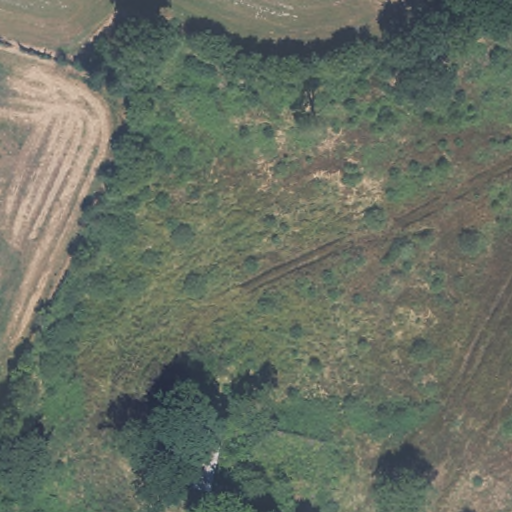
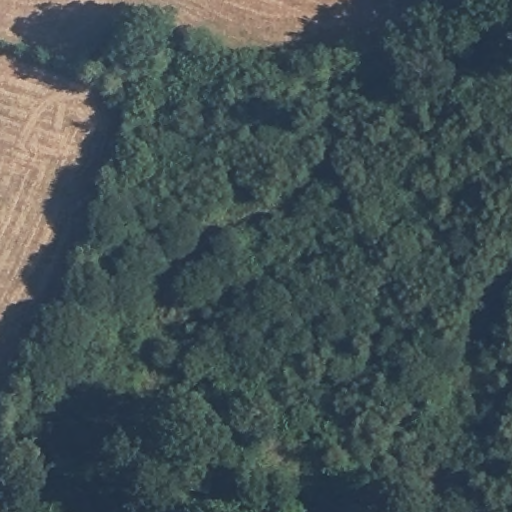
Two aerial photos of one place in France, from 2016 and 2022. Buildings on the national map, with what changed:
unchanged [(209,498),(186,494),(196,435),(227,440),(209,498)]

